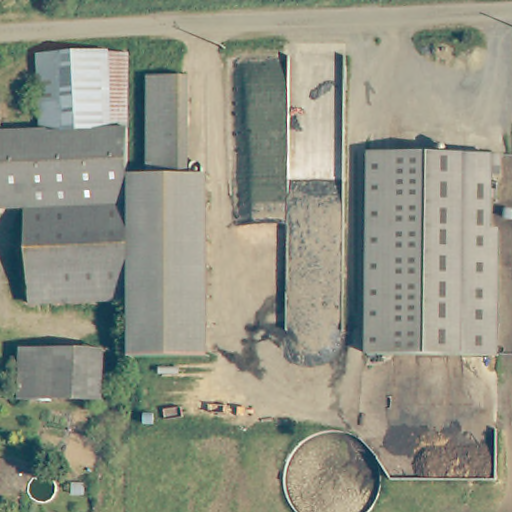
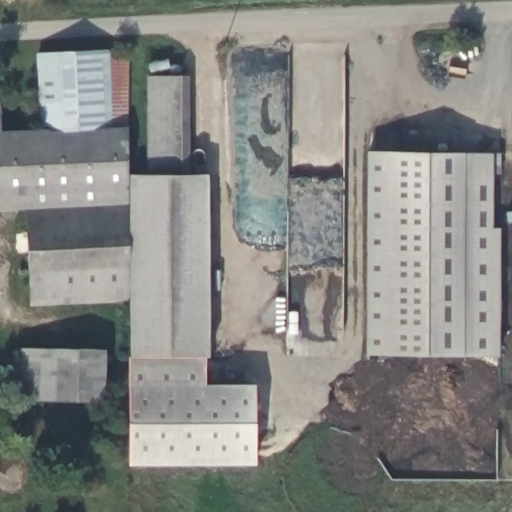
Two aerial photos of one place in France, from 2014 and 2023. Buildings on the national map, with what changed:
unchanged [(36,59),(124,56),(123,132),(36,132),(36,59)]
unchanged [(145,81),(177,81),(177,177),(145,177),(145,81)]
unchanged [(0,192),(0,132),(36,132),(123,132),(123,193),(29,192),(0,192)]
unchanged [(476,354),(369,353),(371,153),(478,154),(476,354)]
unchanged [(478,154),(502,154),(502,166),(492,166),(492,230),(502,230),(502,355),(476,354),(478,154)]
unchanged [(127,180),(145,180),(145,177),(177,177),(177,180),(203,180),(204,360),(127,361),(127,180)]
unchanged [(29,192),(123,193),(123,211),(29,210),(29,192)]
unchanged [(29,210),(123,211),(122,303),(26,300),(29,210)]
unchanged [(23,341),(106,347),(102,399),(18,392),(23,341)]
new [(204,384),(255,384),(257,464),(128,466),(127,361),(204,360),(204,384)]

